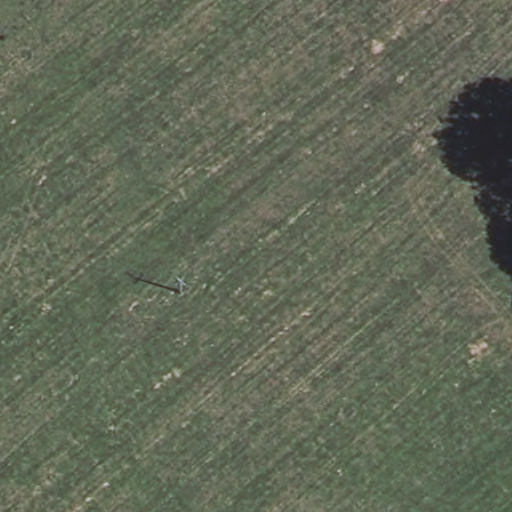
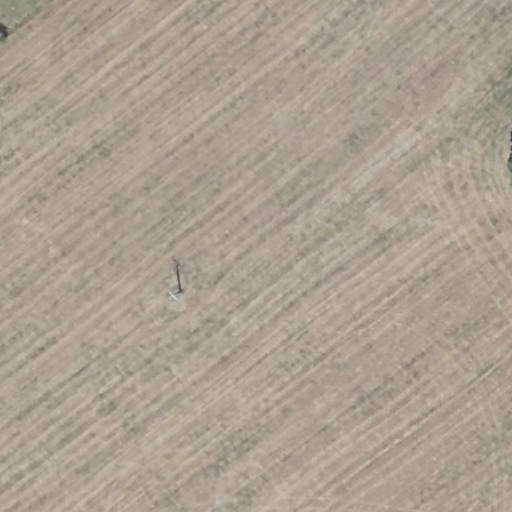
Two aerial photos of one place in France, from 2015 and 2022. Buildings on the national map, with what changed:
[]

